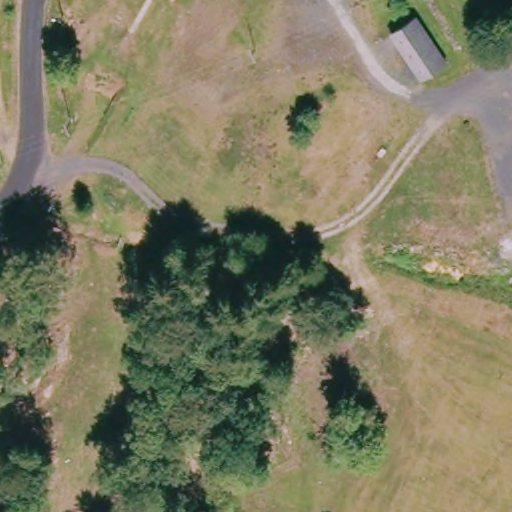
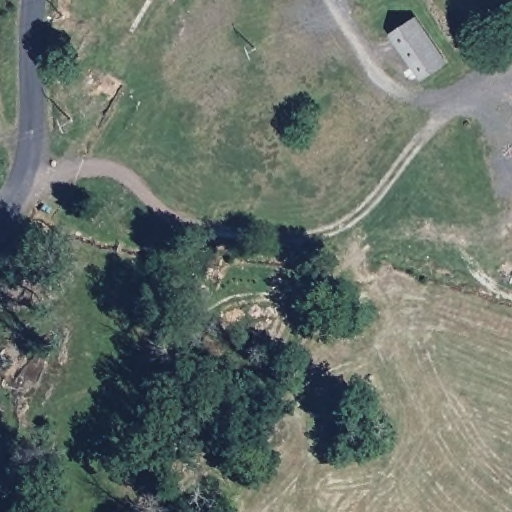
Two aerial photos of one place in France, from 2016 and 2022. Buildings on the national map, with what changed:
unchanged [(448,70),(426,83),(395,36),(419,23),(448,70)]

